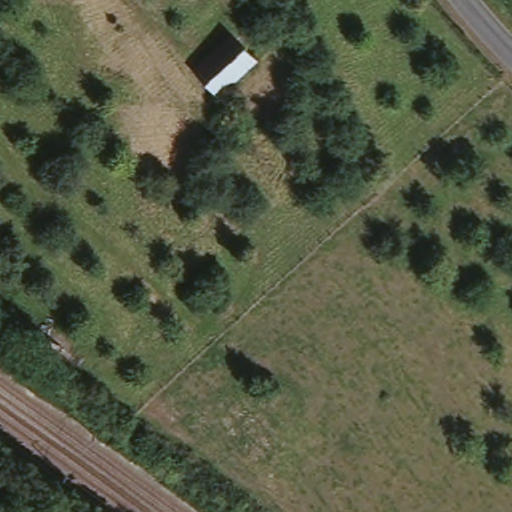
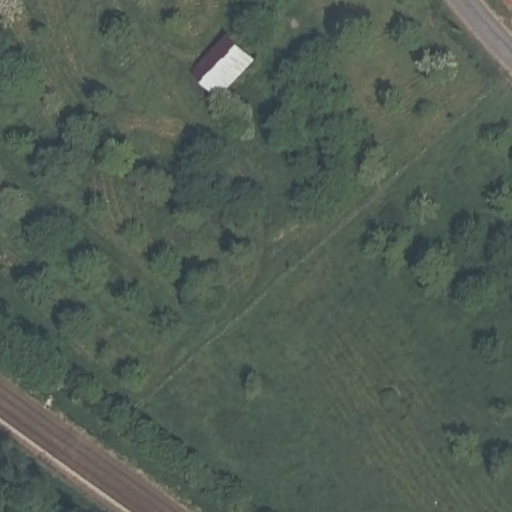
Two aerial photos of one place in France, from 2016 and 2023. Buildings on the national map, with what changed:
unchanged [(229,38),(252,60),(217,99),(194,75),(229,38)]

